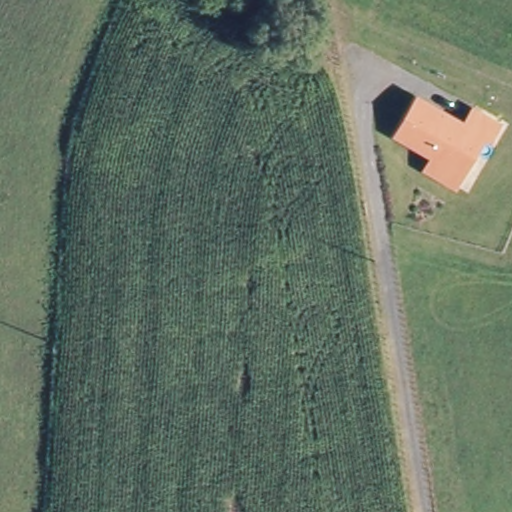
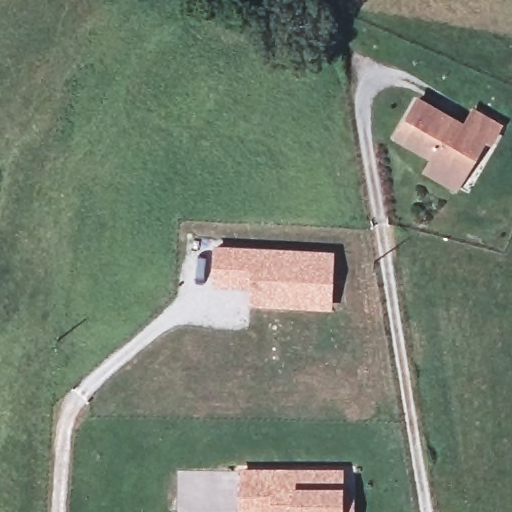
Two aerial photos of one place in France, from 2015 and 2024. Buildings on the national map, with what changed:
unchanged [(395,134),(418,97),(464,125),(473,110),(499,125),(489,141),(482,137),(460,173),(452,186),(423,168),(431,156),(395,134)]
new [(319,308),(274,306),(254,305),(255,287),(217,285),(219,250),(331,256),(330,290),(329,309),(319,308)]
new [(240,476),(337,477),(337,499),(347,499),(347,512),(240,512),(240,476)]

